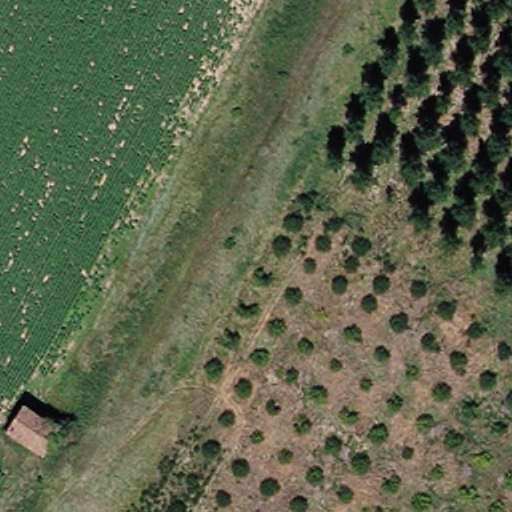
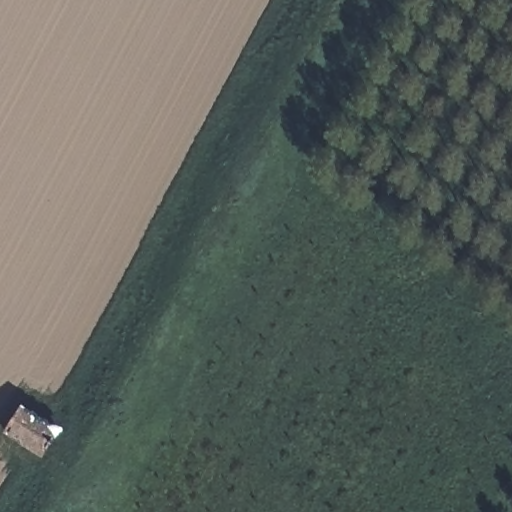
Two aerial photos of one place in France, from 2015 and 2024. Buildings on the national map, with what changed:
unchanged [(40,452),(7,428),(22,405),(55,427),(40,452)]

